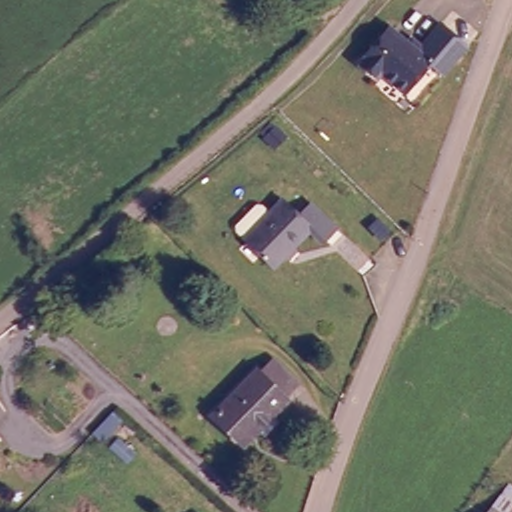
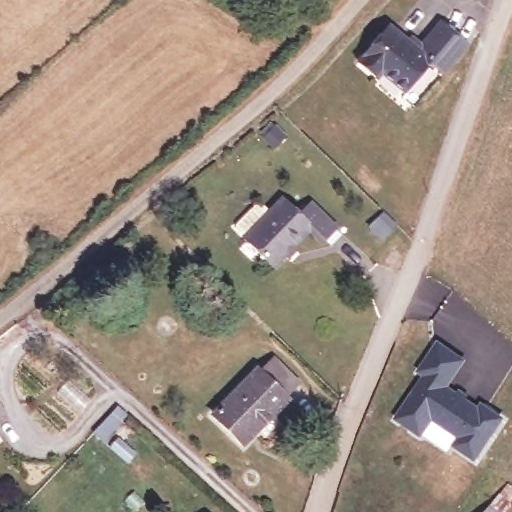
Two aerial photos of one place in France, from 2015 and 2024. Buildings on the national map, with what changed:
unchanged [(433,77),(423,68),(398,97),(371,71),(362,77),(348,65),(386,26),(415,47),(430,30),(455,53),(433,77)]
unchanged [(331,245),(317,232),(281,267),(242,231),(267,206),(277,215),(290,204),(303,219),(318,206),(343,230),(331,245)]
new [(422,376),(415,372),(433,345),(459,362),(441,388),(476,412),(478,407),(498,420),(471,460),(451,447),(457,438),(428,418),(417,436),(393,420),(422,376)]
unchanged [(270,358),(300,388),(239,451),(209,420),(270,358)]
unchanged [(2,417),(0,419),(0,414),(2,417)]
unchanged [(105,442),(89,462),(75,447),(94,427),(105,442)]
unchanged [(512,512),(487,512),(505,487),(512,493),(512,512)]

